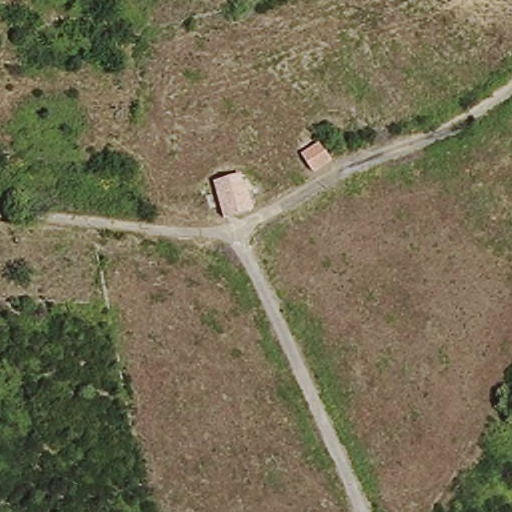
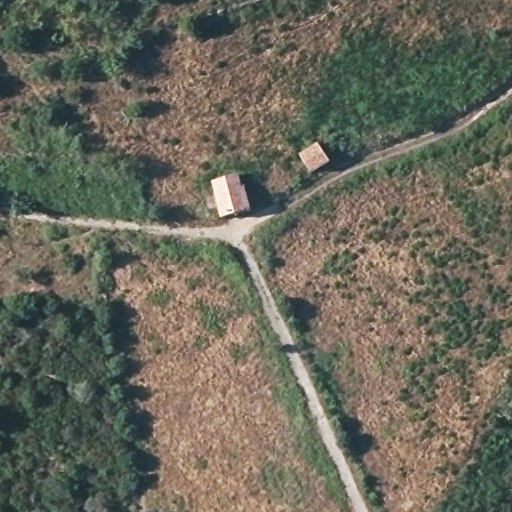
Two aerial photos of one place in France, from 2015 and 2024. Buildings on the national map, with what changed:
unchanged [(324,169),(309,176),(301,159),(318,152),(324,169)]
unchanged [(236,197),(244,194),(248,214),(226,219),(215,183),(229,178),(236,197)]

